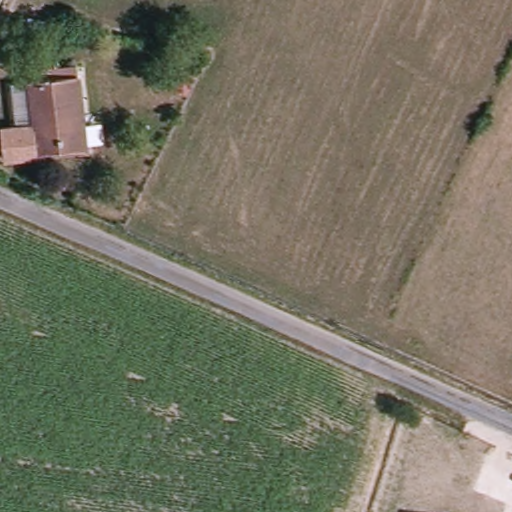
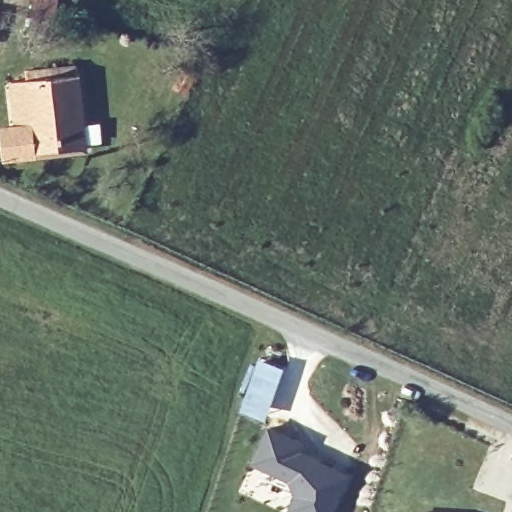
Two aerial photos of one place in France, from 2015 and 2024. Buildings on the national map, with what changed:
unchanged [(0,150),(0,128),(26,126),(21,78),(100,71),(103,111),(76,114),(80,150),(1,158),(0,150)]
new [(302,444),(298,452),(318,462),(333,468),(348,475),(331,512),(294,512),(290,510),(296,496),(291,480),(253,463),(268,429),(302,444)]

